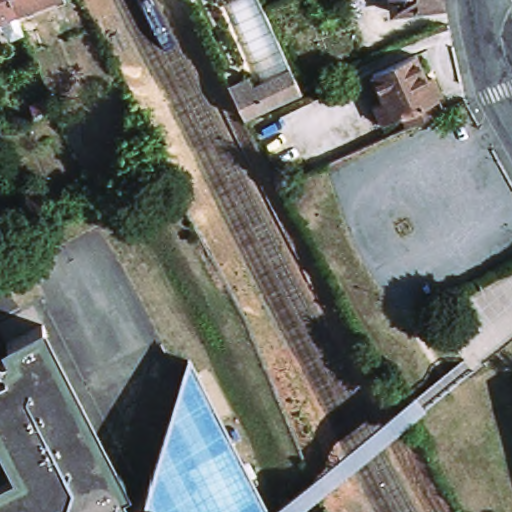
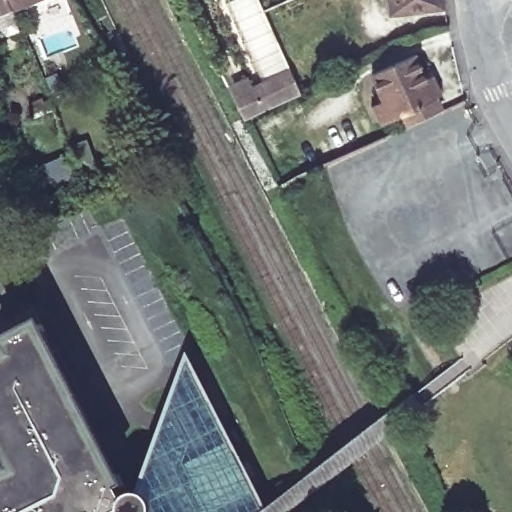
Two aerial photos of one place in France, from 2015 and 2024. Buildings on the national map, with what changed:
unchanged [(16,16),(0,23),(0,0),(14,0),(22,20),(18,22),(16,16)]
unchanged [(60,0),(26,12),(28,18),(22,20),(14,0),(60,0)]
unchanged [(61,5),(60,0),(68,0),(69,3),(61,5)]
unchanged [(393,17),(390,0),(439,0),(441,11),(393,17)]
unchanged [(407,127),(400,114),(390,119),(371,77),(413,59),(424,80),(430,78),(436,92),(431,95),(438,109),(407,127)]
unchanged [(246,111),(234,89),(254,79),(259,88),(294,71),(301,85),(246,111)]
unchanged [(0,480),(12,473),(0,450),(0,357),(1,357),(5,356),(1,343),(44,323),(129,488),(123,492),(129,503),(134,499),(141,499),(148,500),(191,363),(266,512),(0,512),(0,480)]

